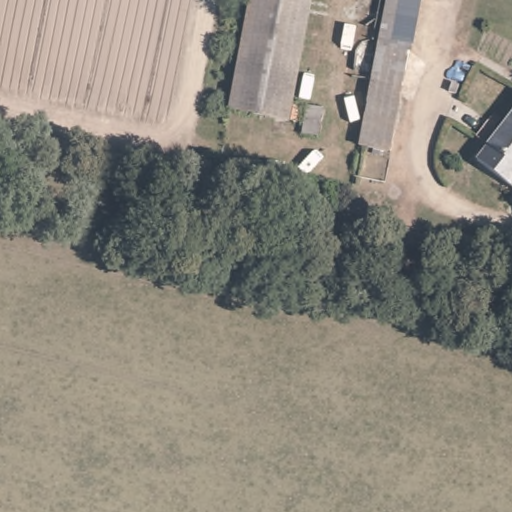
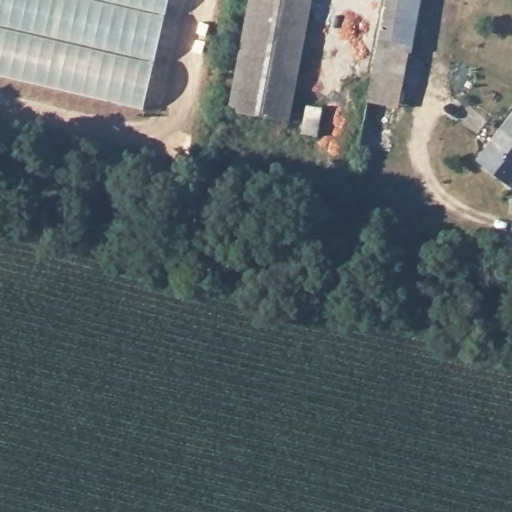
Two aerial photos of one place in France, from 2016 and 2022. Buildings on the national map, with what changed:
new [(0,0),(170,0),(145,108),(0,75),(0,0)]
unchanged [(230,110),(250,0),(308,0),(286,122),(230,110)]
unchanged [(427,0),(399,154),(357,146),(385,0),(427,0)]
unchanged [(486,164),(512,102),(512,177),(486,164)]

